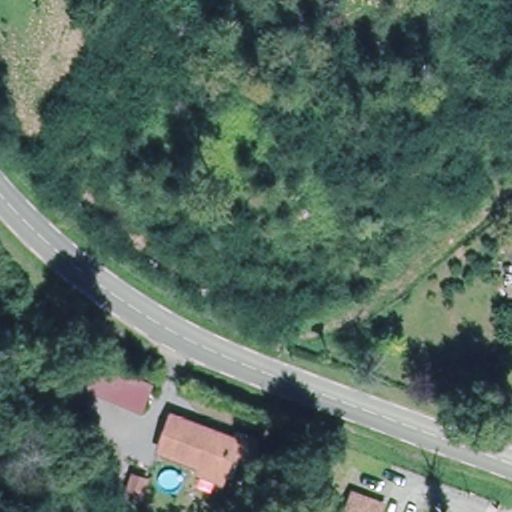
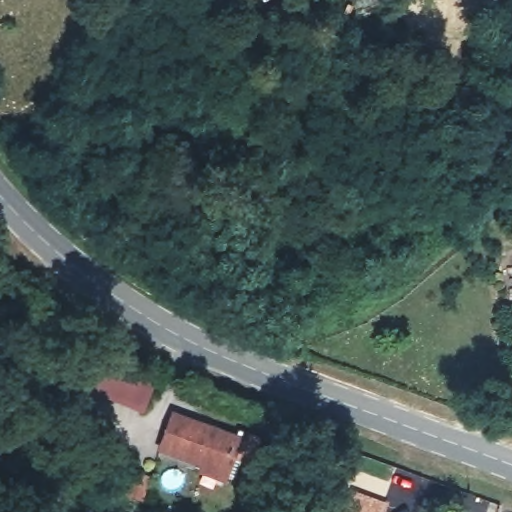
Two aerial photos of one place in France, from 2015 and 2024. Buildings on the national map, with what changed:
unchanged [(154,387),(141,418),(83,392),(95,364),(154,387)]
unchanged [(225,472),(163,450),(179,410),(245,436),(247,430),(268,437),(260,461),(239,454),(232,475),(225,472)]
unchanged [(140,470),(154,475),(147,500),(133,495),(140,470)]
unchanged [(360,478),(391,489),(384,508),(394,512),(346,512),(360,478)]

